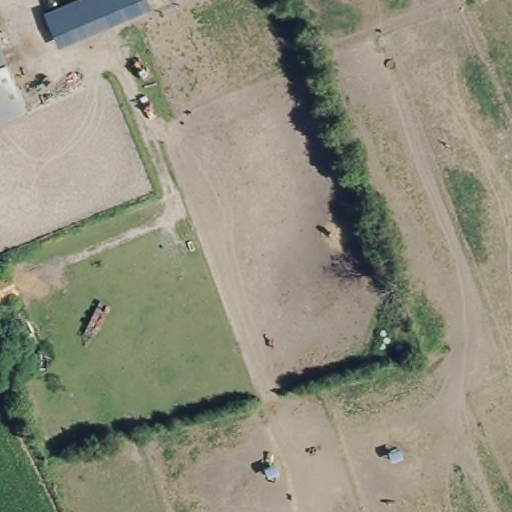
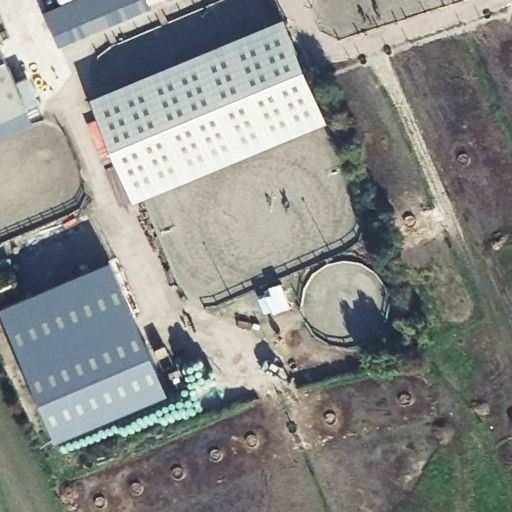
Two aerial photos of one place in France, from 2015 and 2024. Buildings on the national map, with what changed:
unchanged [(67,0),(124,0),(58,28),(49,8),(67,0)]
unchanged [(63,41),(58,28),(124,0),(151,0),(153,4),(63,41)]
new [(331,122),(137,204),(94,100),(287,20),(331,122)]
unchanged [(0,113),(0,44),(24,103),(0,113)]
new [(171,389),(59,438),(3,305),(114,257),(171,389)]

